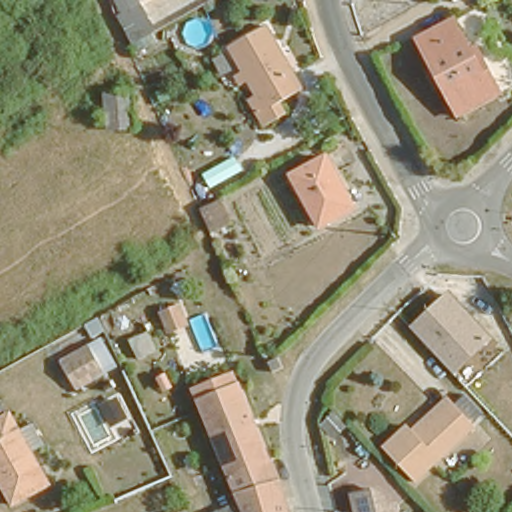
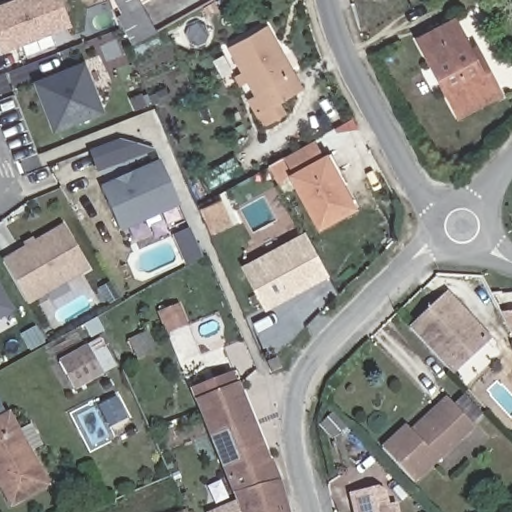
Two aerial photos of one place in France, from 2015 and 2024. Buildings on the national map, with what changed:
new [(71,27),(0,54),(0,4),(10,0),(61,0),(71,27)]
unchanged [(137,20),(145,15),(138,0),(160,0),(179,33),(154,47),(137,20)]
unchanged [(449,16),(466,44),(472,41),(495,86),(455,109),(413,35),(449,16)]
unchanged [(229,40),(267,17),(302,79),(301,79),(280,92),(286,101),(266,115),(259,104),(265,100),(242,61),(229,40)]
new [(104,111),(52,132),(32,81),(84,60),(104,111)]
demolished [(147,134),(127,134),(126,98),(150,97),(151,134),(147,134)]
new [(97,172),(89,149),(119,139),(156,150),(97,172)]
unchanged [(323,145),(354,194),(319,215),(290,167),(323,145)]
new [(179,207),(121,232),(101,185),(160,160),(179,207)]
unchanged [(232,197),(245,218),(227,227),(216,207),(232,197)]
new [(62,224),(88,270),(27,305),(1,260),(23,246),(22,244),(32,237),(34,240),(62,224)]
new [(239,266),(303,231),(328,276),(264,311),(239,266)]
new [(0,286),(15,311),(0,320),(0,286)]
unchanged [(493,337),(456,375),(410,327),(447,291),(493,337)]
new [(497,312),(512,311),(512,337),(497,312)]
unchanged [(94,370),(82,344),(123,324),(136,350),(94,370)]
unchanged [(283,352),(287,360),(277,366),(273,360),(283,352)]
unchanged [(247,375),(276,448),(282,446),(301,492),(305,512),(264,512),(240,446),(217,388),(247,375)]
unchanged [(222,498),(246,488),(207,393),(217,388),(240,446),(264,512),(228,512),(222,498)]
unchanged [(477,412),(470,419),(471,422),(416,476),(381,440),(403,417),(409,422),(442,392),(447,396),(457,389),(477,412)]
unchanged [(17,425),(31,420),(38,438),(27,446),(41,475),(35,482),(7,496),(0,485),(0,410),(7,406),(17,425)]
unchanged [(368,475),(392,493),(396,512),(354,512),(347,481),(368,475)]
unchanged [(182,504),(185,512),(163,512),(182,504)]

